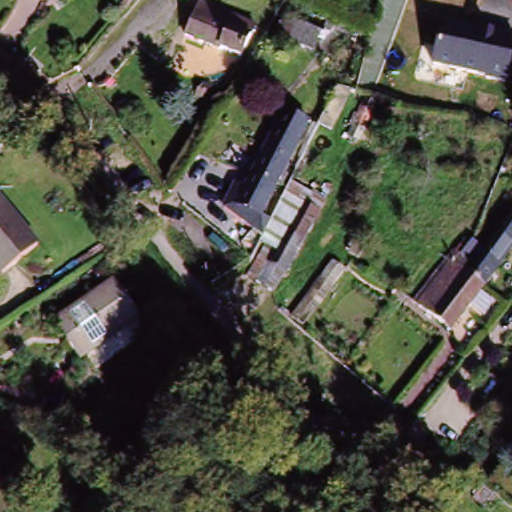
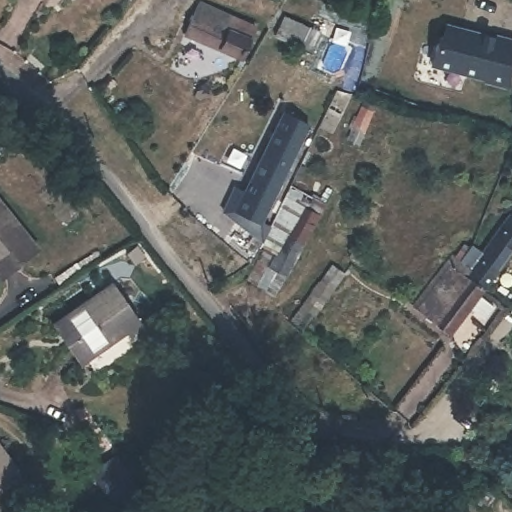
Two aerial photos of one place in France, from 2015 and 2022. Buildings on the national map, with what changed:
unchanged [(188,40),(176,35),(186,13),(191,2),(253,30),(249,40),(240,62),(188,40)]
unchanged [(276,36),(289,10),(326,27),(313,53),(276,36)]
unchanged [(444,23),(512,41),(512,63),(507,84),(432,68),(444,23)]
unchanged [(243,214),(248,204),(241,201),(279,129),(283,121),(304,132),(264,212),(259,222),(243,214)]
unchanged [(0,282),(0,281),(0,197),(39,257),(0,282)]
unchanged [(256,290),(254,290),(238,281),(243,272),(255,247),(281,197),(303,209),(320,219),(284,278),(271,298),(256,290)]
unchanged [(253,239),(239,256),(210,234),(222,215),(253,239)]
unchanged [(449,266),(457,256),(462,259),(472,242),(484,252),(510,216),(512,217),(512,253),(484,291),(478,298),(489,307),(478,325),(464,317),(458,326),(454,332),(446,342),(410,317),(418,307),(449,266)]
unchanged [(281,328),(293,313),(323,272),(335,281),(304,324),(294,339),(281,328)]
unchanged [(139,327),(83,361),(59,322),(113,288),(139,327)]
unchanged [(422,429),(444,425),(447,441),(426,445),(422,429)]
unchanged [(0,484),(0,449),(15,476),(0,484)]

